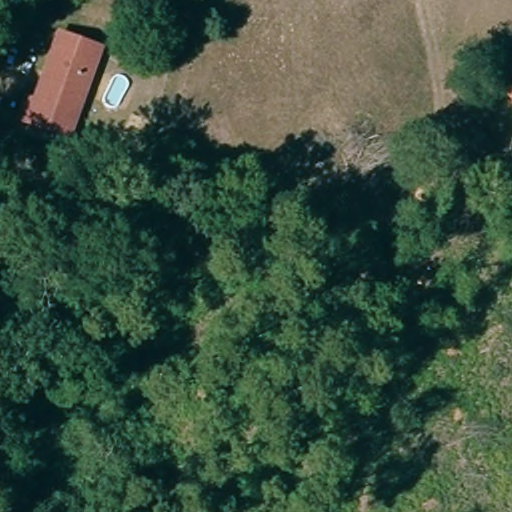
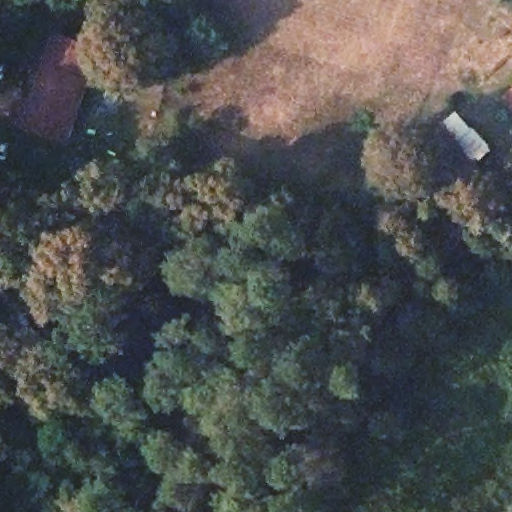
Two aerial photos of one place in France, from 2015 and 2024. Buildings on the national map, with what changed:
unchanged [(57,135),(23,123),(30,102),(37,104),(62,37),(104,52),(78,120),(71,140),(57,135)]
unchanged [(461,141),(476,128),(489,143),(474,155),(461,141)]

